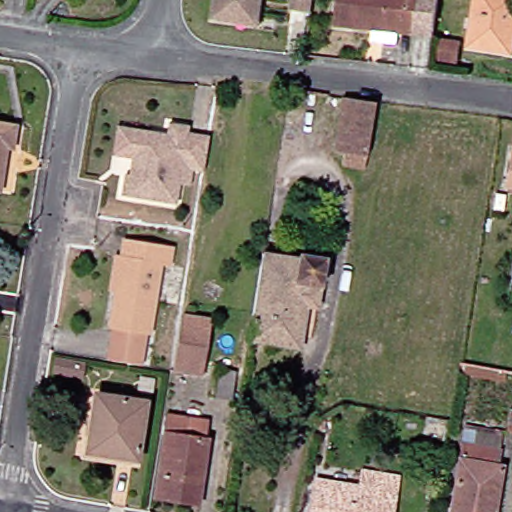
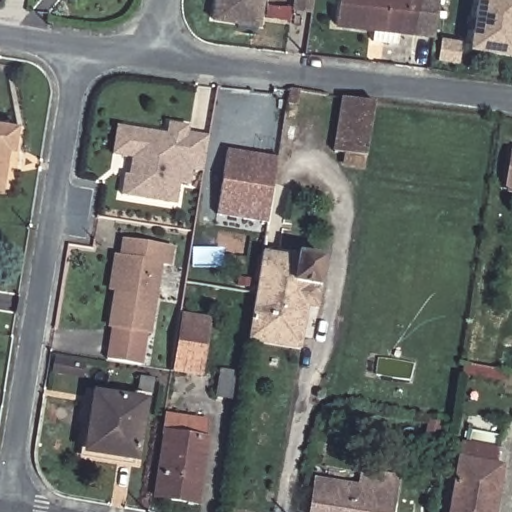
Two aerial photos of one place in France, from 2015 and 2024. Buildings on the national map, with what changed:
unchanged [(211,21),(214,0),(262,0),(259,17),(258,27),(236,25),(211,21)]
unchanged [(311,15),(294,12),(296,0),(314,0),(312,12),(311,15)]
unchanged [(379,30),(339,24),(342,0),(445,0),(440,38),(404,33),(403,43),(378,40),(379,30)]
unchanged [(480,0),(512,0),(512,54),(473,47),(480,0)]
unchanged [(461,43),(459,60),(443,58),(445,41),(461,43)]
unchanged [(298,92),(296,107),(287,105),(289,90),(298,92)]
unchanged [(350,156),(337,154),(345,99),(379,106),(371,159),(369,171),(348,167),(350,156)]
unchanged [(21,129),(17,152),(5,150),(0,185),(0,125),(21,129)]
unchanged [(180,206),(128,197),(131,177),(135,177),(138,160),(128,158),(119,157),(123,129),(133,130),(173,137),(175,126),(194,129),(193,136),(213,139),(208,173),(196,171),(193,187),(183,185),(180,206)]
new [(227,152),(277,157),(265,222),(217,216),(227,152)]
unchanged [(512,184),(512,191),(511,191),(512,184)]
unchanged [(179,250),(176,267),(168,266),(156,334),(153,333),(148,365),(119,361),(113,360),(118,327),(116,327),(122,292),(117,292),(123,257),(127,257),(131,241),(179,250)]
unchanged [(304,262),(305,257),(330,262),(320,330),(309,327),(305,352),(256,342),(270,256),(304,262)]
unchanged [(176,371),(185,316),(213,321),(205,363),(203,375),(189,373),(176,371)]
unchanged [(77,365),(76,377),(49,372),(51,361),(77,365)]
unchanged [(227,402),(212,400),(217,372),(231,375),(227,402)]
unchanged [(171,415),(174,394),(189,397),(198,398),(196,408),(187,407),(185,417),(171,415)]
unchanged [(142,459),(93,452),(103,396),(151,402),(142,459)]
unchanged [(206,423),(204,441),(208,442),(200,505),(159,498),(168,437),(164,436),(167,417),(206,423)]
unchanged [(466,439),(469,440),(471,428),(499,435),(497,445),(502,446),(499,462),(505,463),(496,512),(453,512),(466,439)]
unchanged [(394,512),(313,512),(318,480),(362,488),(365,473),(399,480),(394,512)]

